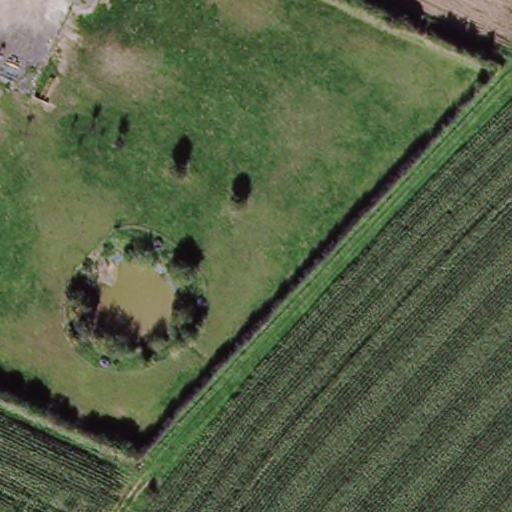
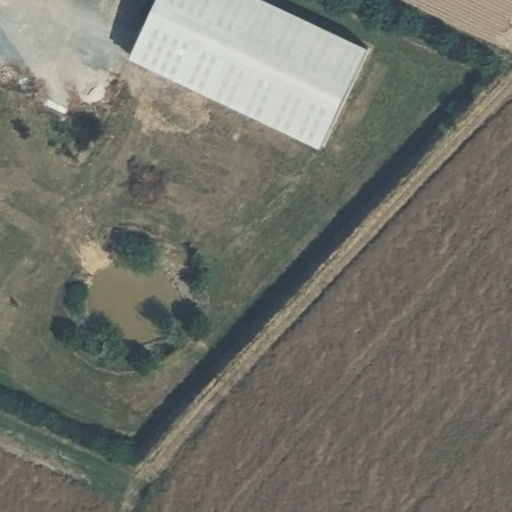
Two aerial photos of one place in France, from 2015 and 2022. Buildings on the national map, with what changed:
new [(322,148),(130,59),(157,0),(268,0),(370,49),(322,148)]

